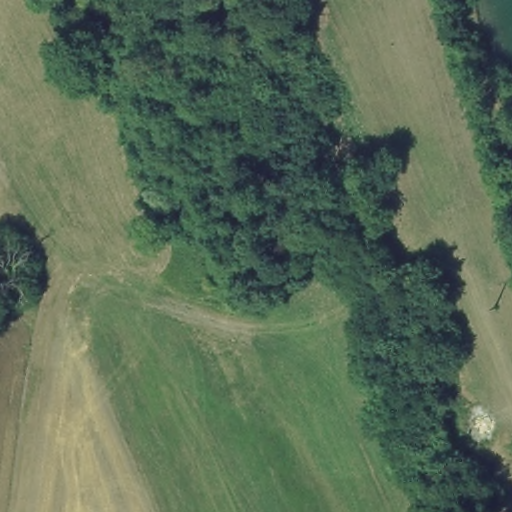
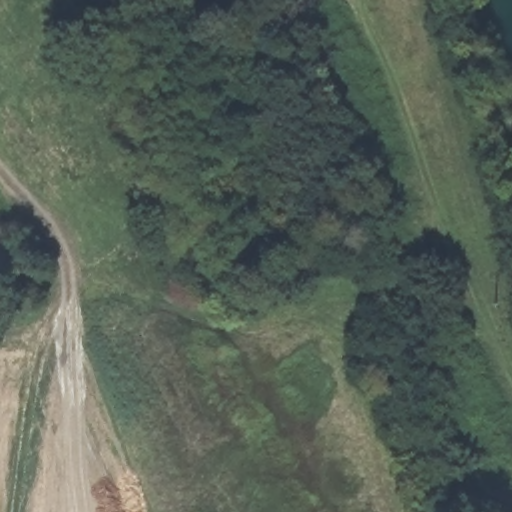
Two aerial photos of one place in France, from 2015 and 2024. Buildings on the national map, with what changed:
[]

